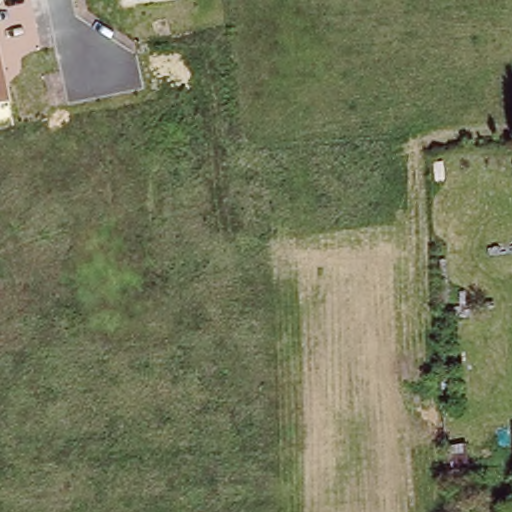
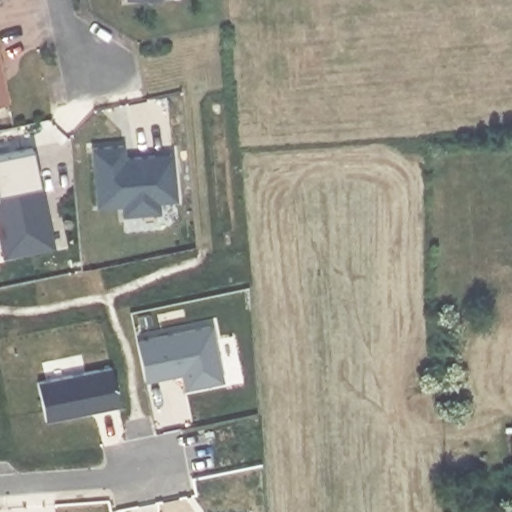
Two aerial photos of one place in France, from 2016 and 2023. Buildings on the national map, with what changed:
unchanged [(0,104),(0,63),(8,103),(0,104)]
new [(161,204),(162,213),(123,216),(122,204),(97,207),(92,148),(125,143),(127,156),(175,151),(180,200),(161,204)]
new [(0,237),(0,155),(34,148),(42,183),(55,246),(5,257),(0,237)]
new [(210,324),(220,379),(184,386),(180,371),(143,379),(135,340),(210,324)]
new [(110,366),(117,404),(87,410),(86,408),(78,409),(78,412),(45,419),(37,380),(110,366)]

